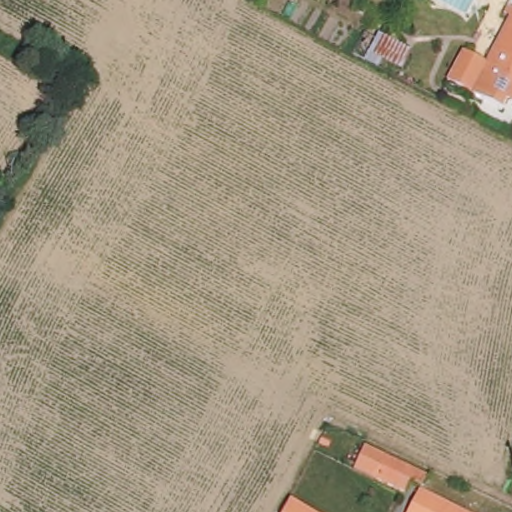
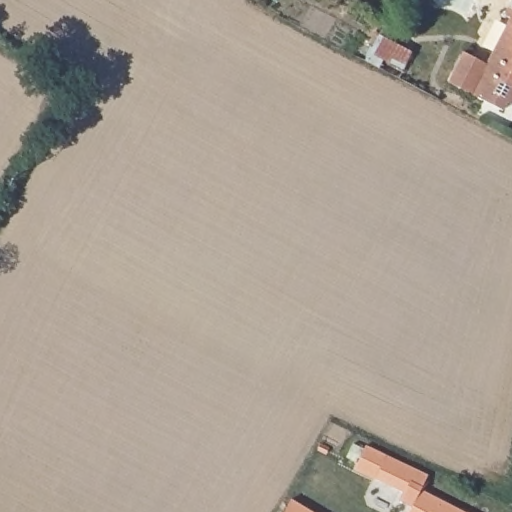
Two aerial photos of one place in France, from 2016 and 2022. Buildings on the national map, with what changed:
unchanged [(502,101),(498,110),(444,83),(458,52),(485,65),(507,19),(499,15),(506,0),(512,0),(512,106),(502,101)]
unchanged [(407,54),(398,71),(364,54),(373,37),(407,54)]
unchanged [(424,476),(418,489),(407,483),(403,492),(375,479),(385,459),(424,476)]
unchanged [(459,512),(410,512),(421,492),(459,512)]
unchanged [(284,512),(291,500),(312,512),(284,512)]

